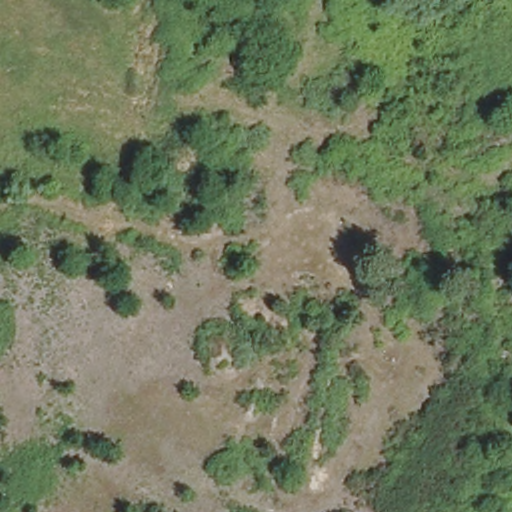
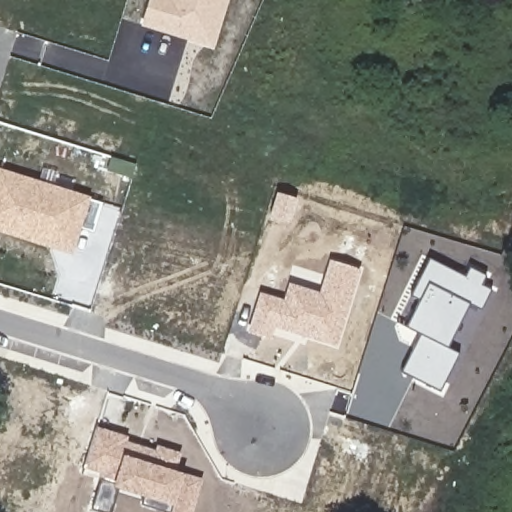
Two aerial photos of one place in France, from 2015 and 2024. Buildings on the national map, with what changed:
new [(142,25),(150,0),(226,0),(224,8),(212,47),(142,25)]
new [(130,177),(117,173),(121,162),(133,166),(130,177)]
new [(78,228),(73,241),(13,222),(9,233),(0,229),(0,171),(102,203),(93,232),(78,228)]
new [(71,251),(10,232),(13,222),(74,241),(71,251)]
new [(469,267),(486,275),(482,284),(492,289),(481,311),(470,305),(448,347),(459,353),(440,392),(401,372),(419,334),(405,327),(397,323),(410,296),(419,278),(429,258),(457,272),(465,276),(469,267)]
new [(274,326),(270,336),(250,330),(261,295),(284,302),(290,285),(320,294),(331,262),(359,270),(335,345),(274,326)]
new [(128,436),(127,441),(155,450),(157,445),(181,452),(176,470),(186,473),(203,478),(194,512),(165,512),(140,505),(142,499),(117,492),(112,512),(101,512),(89,509),(101,473),(83,468),(95,426),(128,436)]

